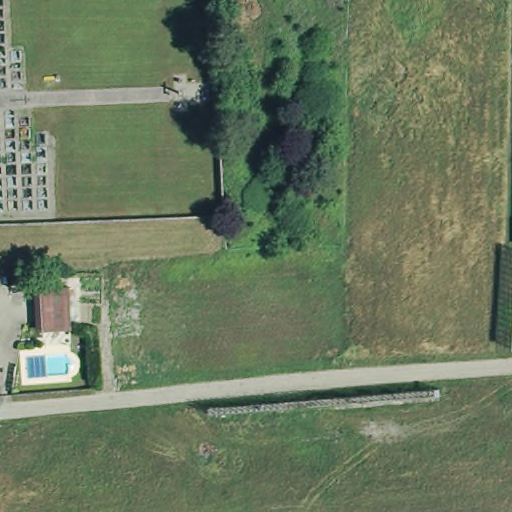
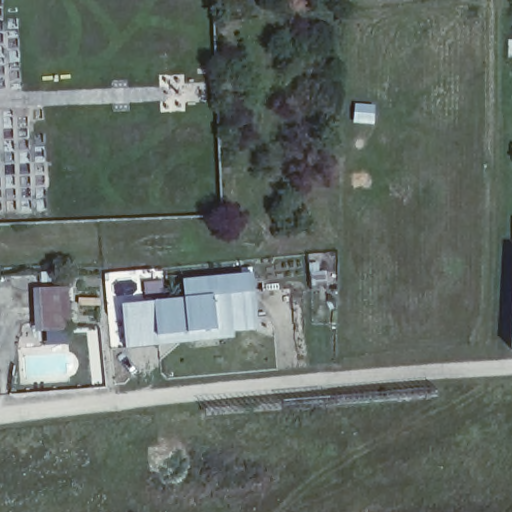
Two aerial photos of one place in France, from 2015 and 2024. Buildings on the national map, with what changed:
new [(161,345),(127,348),(123,306),(186,300),(185,281),(255,275),(260,329),(235,331),(235,338),(161,345)]
unchanged [(55,292),(60,334),(32,336),(28,295),(55,292)]

